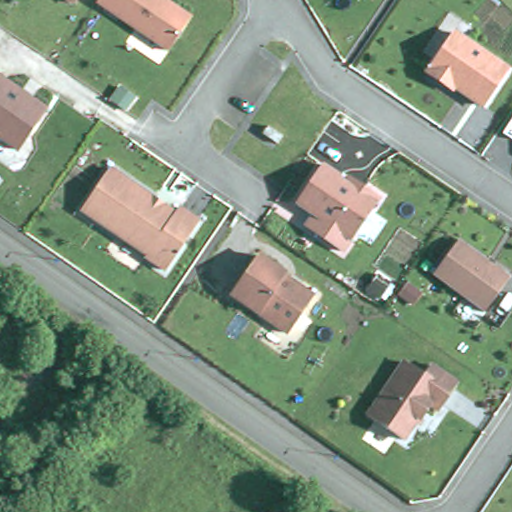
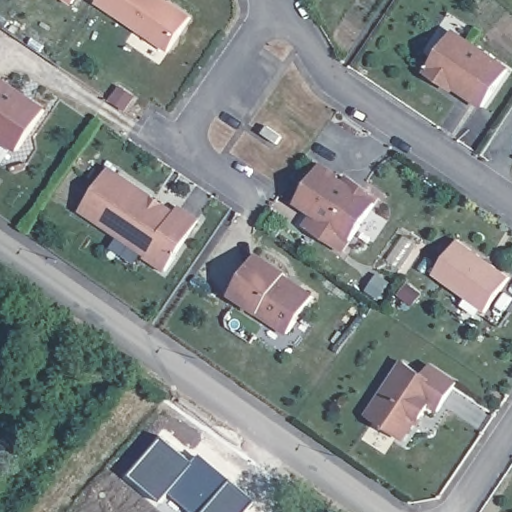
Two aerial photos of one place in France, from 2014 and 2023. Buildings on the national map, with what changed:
unchanged [(71,1),(69,0),(73,0),(71,1)]
unchanged [(96,1),(97,0),(168,0),(191,15),(168,50),(96,1)]
unchanged [(448,80),(437,74),(436,67),(460,32),(512,67),(512,73),(492,103),(479,94),(477,96),(461,86),(459,89),(448,80)]
unchanged [(23,149),(0,134),(0,75),(51,108),(23,149)]
unchanged [(275,142),(261,132),(266,125),(281,135),(275,142)]
unchanged [(313,212),(296,201),(322,163),(339,174),(337,176),(343,180),(346,175),(359,183),(378,196),(343,249),(323,235),(305,224),(313,212)]
unchanged [(179,212),(183,206),(201,219),(168,268),(149,255),(151,254),(86,210),(114,167),(179,212)]
unchanged [(512,271),(512,278),(491,307),(439,270),(464,236),(512,271)]
unchanged [(230,292),(256,254),(284,272),(279,278),(291,286),(299,284),(313,293),(287,330),(230,292)]
unchanged [(460,380),(441,408),(433,403),(426,413),(423,411),(406,437),(371,414),(407,360),(427,373),(434,363),(460,380)]
new [(194,462),(203,454),(258,501),(248,512),(193,512),(171,493),(162,502),(131,475),(165,437),(194,462)]

